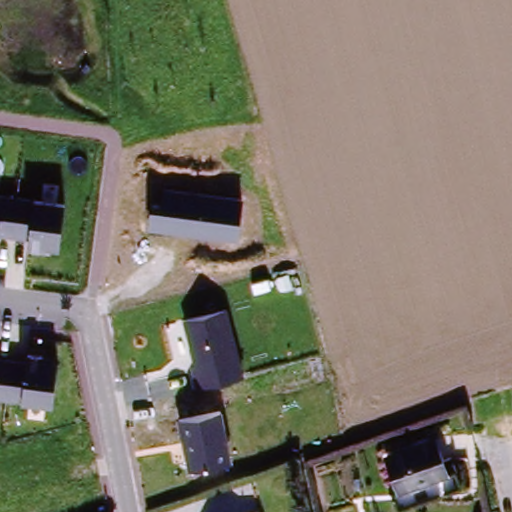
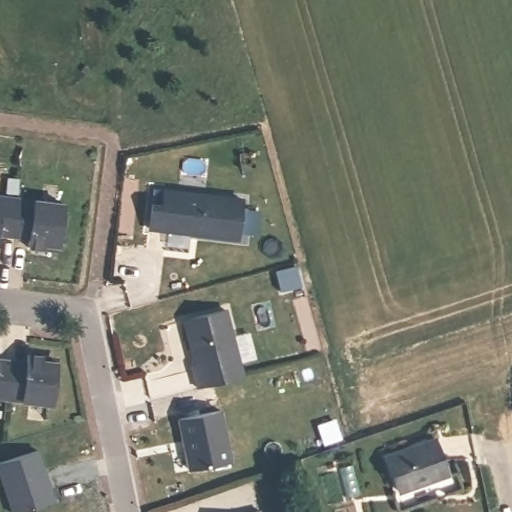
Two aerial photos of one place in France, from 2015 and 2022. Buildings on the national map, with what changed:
unchanged [(151,183),(243,194),(238,237),(147,225),(151,183)]
unchanged [(68,206),(63,255),(28,250),(28,241),(0,237),(0,199),(68,206)]
unchanged [(191,363),(193,362),(183,319),(228,305),(244,377),(196,388),(191,363)]
unchanged [(28,356),(61,360),(55,408),(23,402),(0,399),(0,353),(28,356)]
unchanged [(221,410),(230,464),(186,473),(178,418),(221,410)]
unchanged [(436,439),(449,478),(399,494),(387,455),(436,439)]
new [(38,452),(55,504),(31,512),(14,512),(0,469),(0,465),(38,452)]

